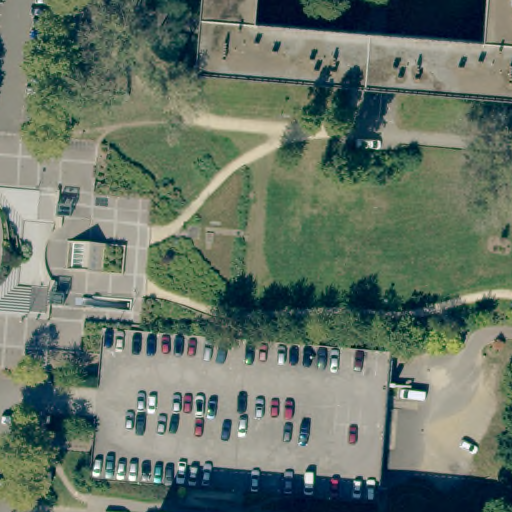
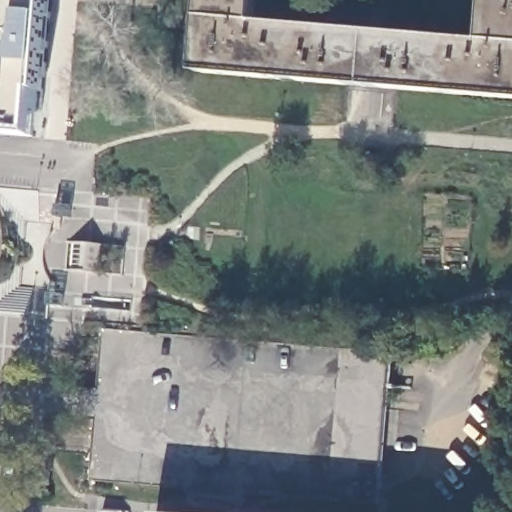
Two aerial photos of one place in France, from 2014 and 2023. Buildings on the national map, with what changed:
new [(47,0),(35,132),(0,130),(0,0),(47,0)]
unchanged [(345,80),(194,67),(198,28),(199,12),(200,0),(255,0),(253,17),(348,25),(479,36),(482,0),(512,0),(512,92),(380,82),(345,80)]
unchanged [(58,206),(73,207),(72,219),(63,218),(55,217),(56,205),(58,206)]
unchanged [(58,294),(66,295),(65,307),(57,307),(49,306),(49,293),(58,294)]
unchanged [(157,510),(182,512),(157,512),(157,510)]

